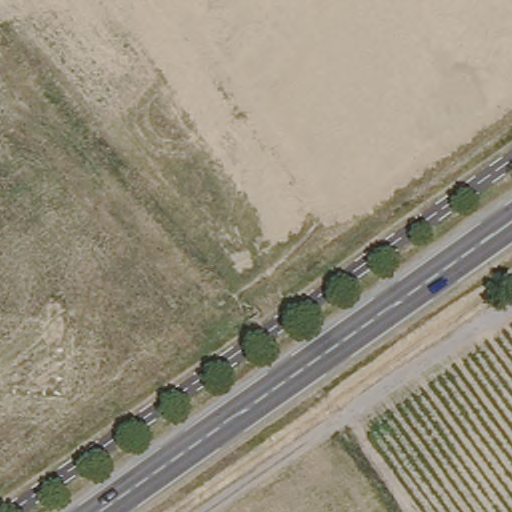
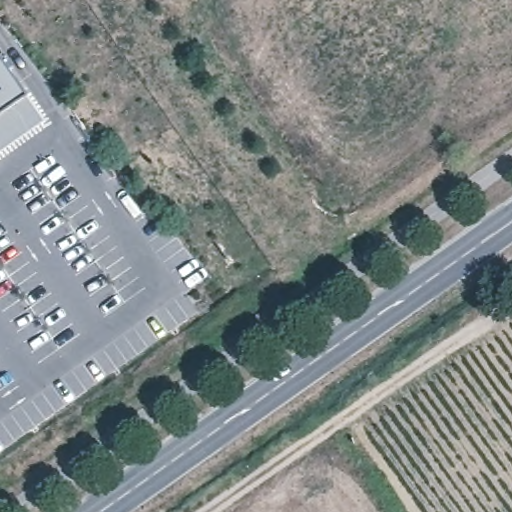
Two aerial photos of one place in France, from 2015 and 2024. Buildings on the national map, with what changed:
new [(27,95),(43,120),(0,151),(0,56),(27,95)]

